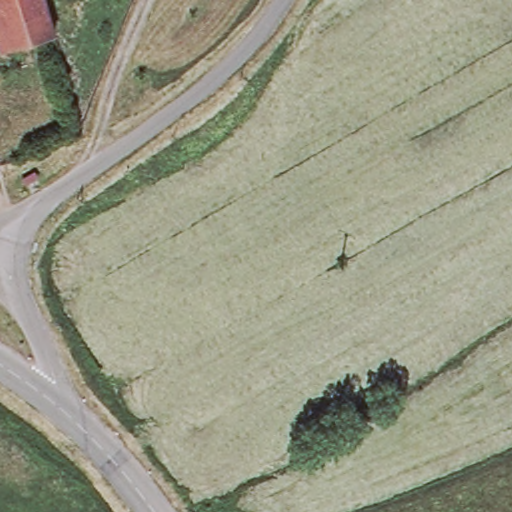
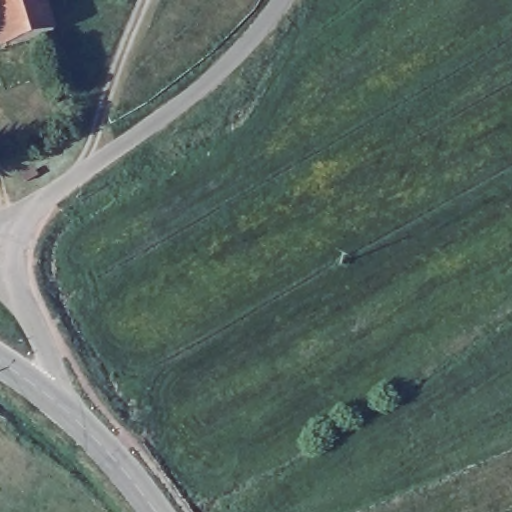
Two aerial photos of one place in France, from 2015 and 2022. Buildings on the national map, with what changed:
unchanged [(0,50),(0,0),(32,0),(42,40),(0,50)]

